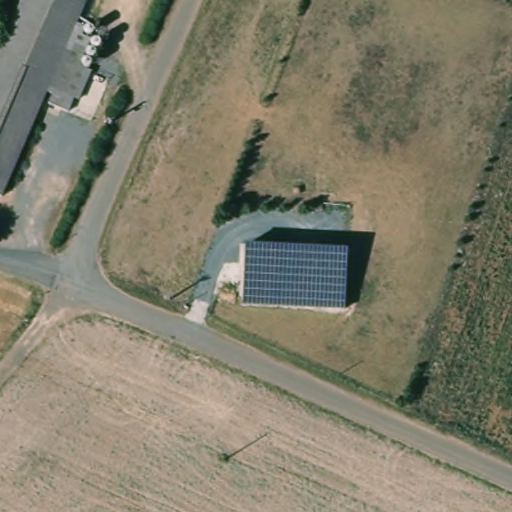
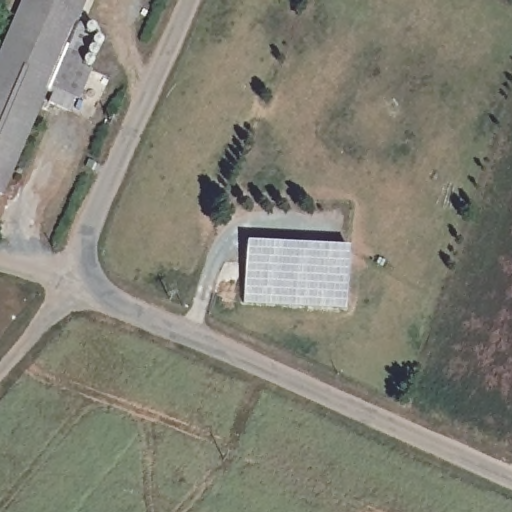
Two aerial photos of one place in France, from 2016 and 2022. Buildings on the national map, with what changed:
unchanged [(70,103),(47,93),(1,200),(0,200),(0,55),(24,0),(89,0),(72,40),(94,50),(70,103)]
unchanged [(243,305),(246,245),(347,249),(345,308),(243,305)]

